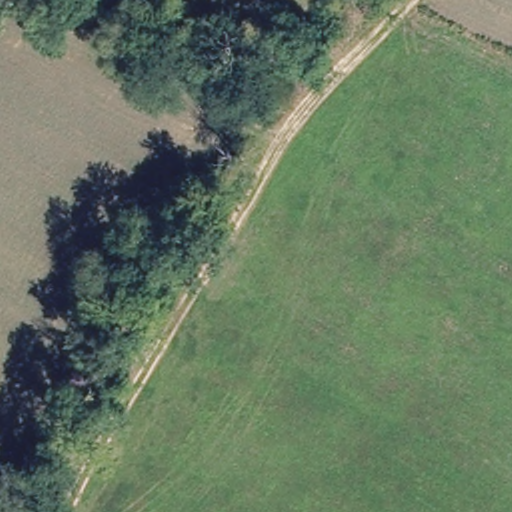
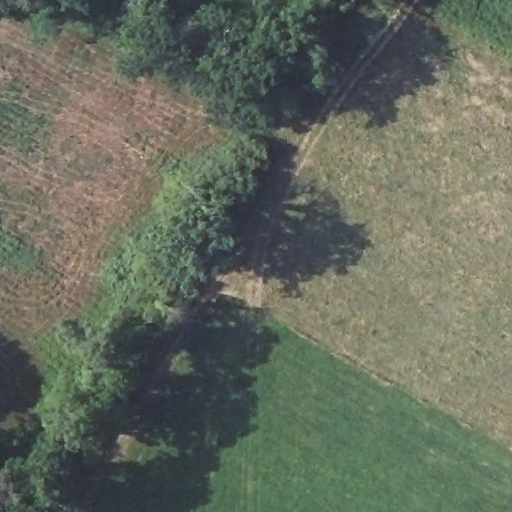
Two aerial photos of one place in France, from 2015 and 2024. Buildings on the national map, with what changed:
[]

